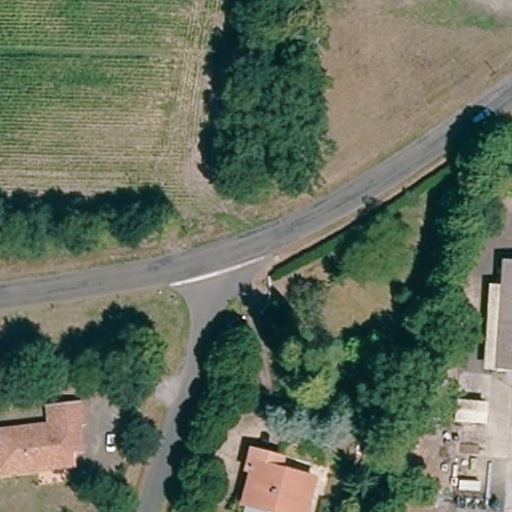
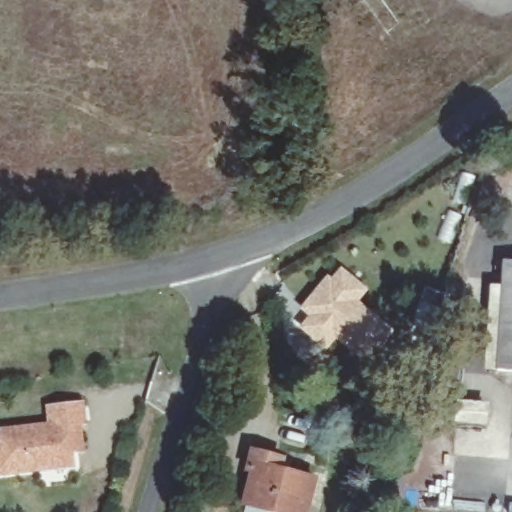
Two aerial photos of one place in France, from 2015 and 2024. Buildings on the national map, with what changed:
unchanged [(512,258),(512,370),(488,368),(492,317),(483,315),(486,285),(495,286),(498,257),(512,258)]
new [(306,316),(298,308),(327,273),(330,276),(340,265),(368,289),(360,301),(371,311),(342,345),(337,340),(326,352),(297,327),(306,316)]
new [(371,311),(392,330),(363,363),(342,345),(371,311)]
unchanged [(45,404),(85,399),(89,423),(84,424),(86,451),(74,451),(75,465),(0,475),(0,427),(47,421),(45,404)]
unchanged [(301,471),(293,510),(236,496),(245,457),(301,471)]

